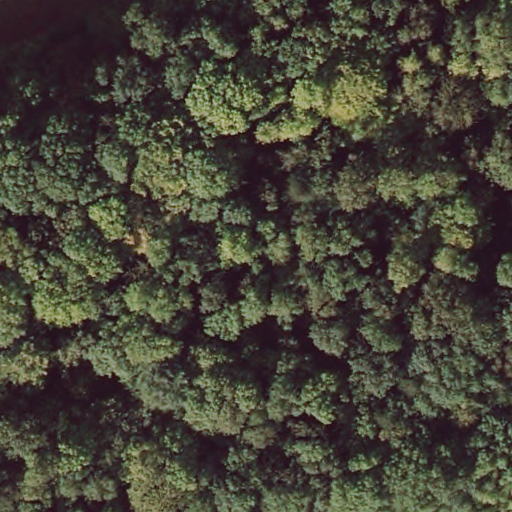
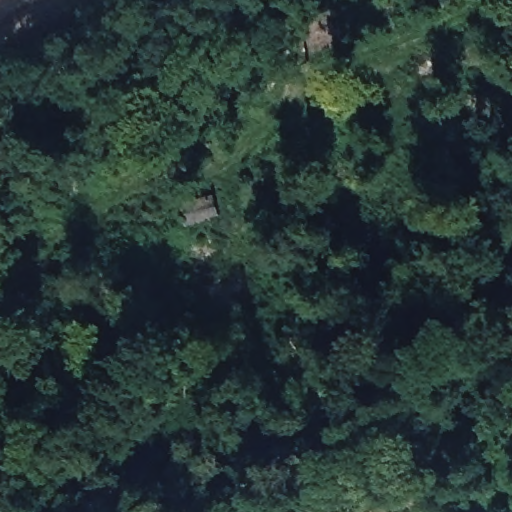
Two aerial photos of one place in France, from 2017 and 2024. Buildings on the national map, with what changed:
unchanged [(215,192),(218,208),(189,212),(186,197),(215,192)]
unchanged [(497,220),(512,206),(512,236),(497,220)]

